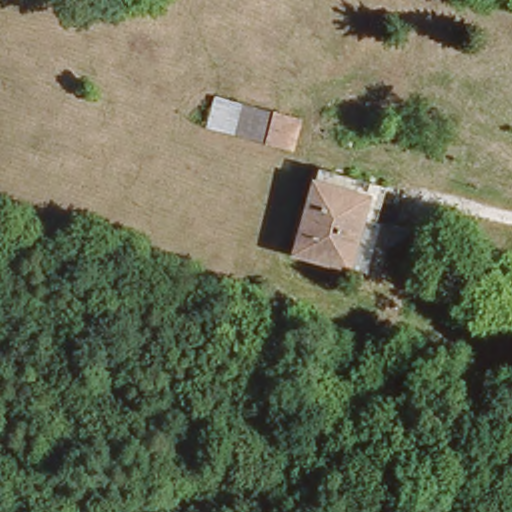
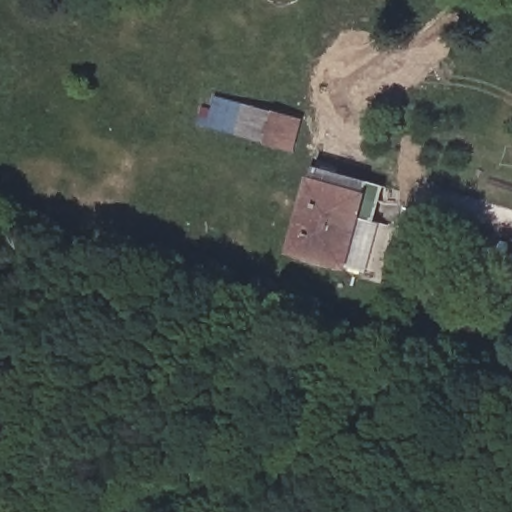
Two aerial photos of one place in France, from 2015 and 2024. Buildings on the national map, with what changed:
unchanged [(209,87),(302,114),(296,143),(197,118),(209,87)]
unchanged [(309,177),(313,163),(377,181),(367,215),(373,217),(359,265),(341,260),(361,192),(309,177)]
unchanged [(289,246),(309,177),(361,192),(341,260),(289,246)]

